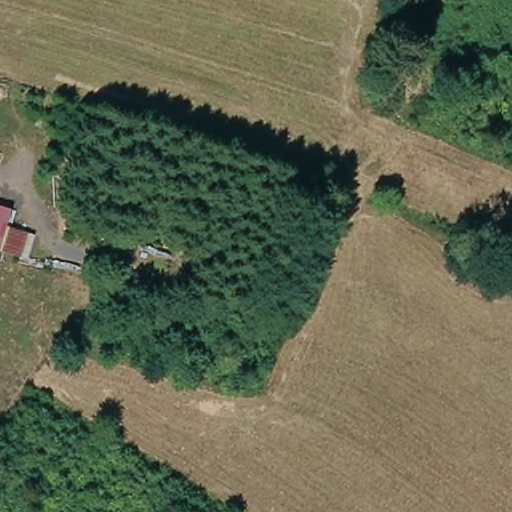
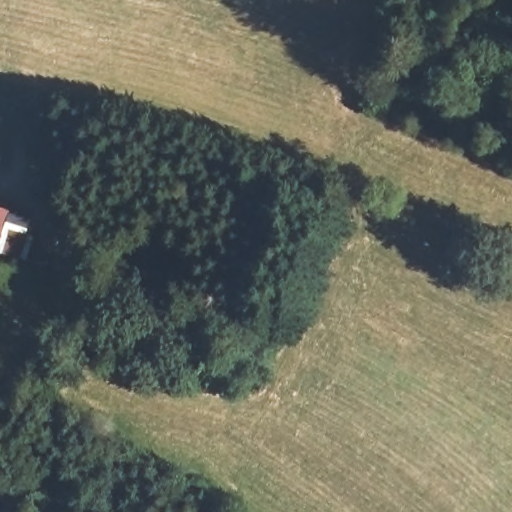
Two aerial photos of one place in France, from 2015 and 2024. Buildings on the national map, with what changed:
unchanged [(0,249),(0,208),(11,212),(3,250),(0,249)]

